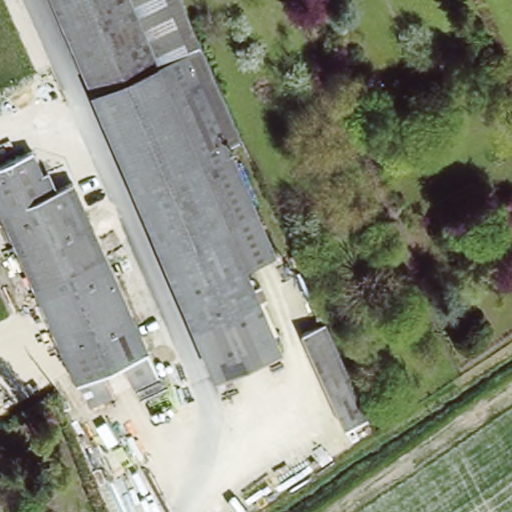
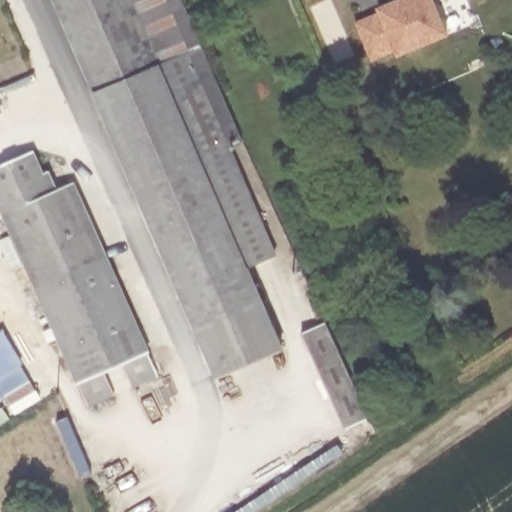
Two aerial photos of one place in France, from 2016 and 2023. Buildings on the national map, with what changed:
unchanged [(232,142),(144,180),(139,182),(58,0),(172,0),(232,142)]
new [(377,11),(375,8),(394,0),(435,0),(448,34),(397,57),(394,52),(371,62),(353,22),(377,11)]
unchanged [(232,142),(277,251),(245,268),(282,351),(230,374),(144,180),(232,142)]
unchanged [(0,166),(33,150),(55,194),(73,185),(140,331),(75,376),(0,208),(0,166)]
unchanged [(230,374),(218,378),(139,182),(144,180),(230,374)]
unchanged [(368,415),(347,427),(302,332),(327,321),(368,415)]
new [(22,363),(21,364),(37,391),(10,405),(5,395),(0,398),(0,332),(3,330),(22,363)]
unchanged [(88,405),(78,385),(75,376),(140,331),(150,352),(159,373),(133,385),(124,364),(122,360),(105,368),(107,372),(116,393),(88,405)]

